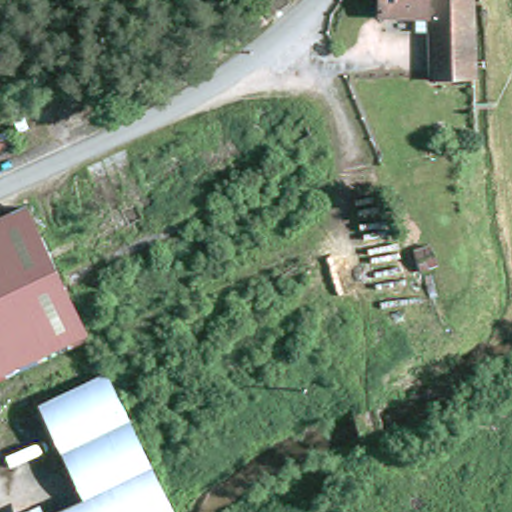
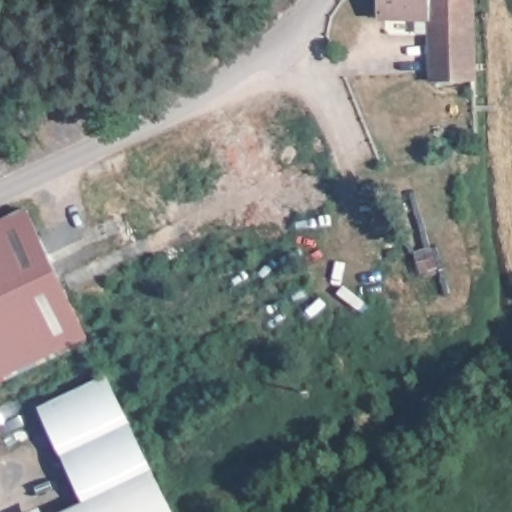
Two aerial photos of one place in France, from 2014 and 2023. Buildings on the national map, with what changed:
unchanged [(413,22),(382,21),(382,0),(429,0),(429,23),(426,22),(426,37),(414,37),(413,22)]
unchanged [(470,0),(473,90),(430,87),(429,23),(429,0),(470,0)]
unchanged [(28,230),(0,242),(0,225),(22,216),(28,230)]
unchanged [(62,306),(0,332),(0,242),(28,230),(62,306)]
unchanged [(80,347),(0,383),(0,332),(62,306),(80,347)]
unchanged [(37,407),(107,372),(132,423),(61,455),(37,407)]
unchanged [(84,500),(61,455),(132,423),(154,467),(84,500)]
unchanged [(84,500),(154,467),(176,512),(59,512),(84,500)]
unchanged [(42,503),(45,512),(23,512),(42,503)]

